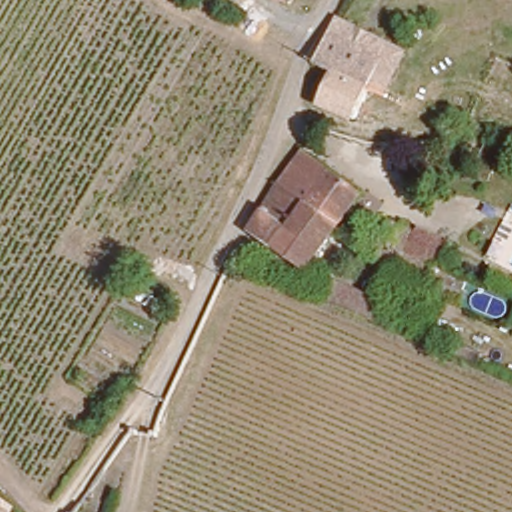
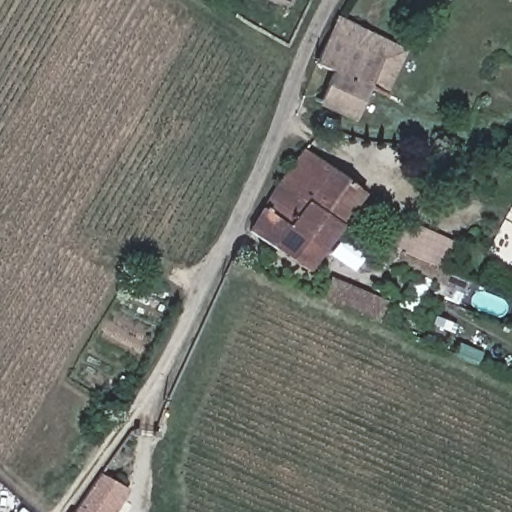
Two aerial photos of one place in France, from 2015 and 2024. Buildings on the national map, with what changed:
unchanged [(275,0),(292,0),(291,3),(290,6),(275,0)]
unchanged [(510,0),(512,0),(512,1),(510,0)]
unchanged [(336,69),(321,61),(333,33),(342,15),(407,48),(399,65),(385,94),(371,86),(336,69)]
unchanged [(362,105),(353,119),(337,111),(319,103),(336,69),(371,86),(362,105)]
unchanged [(278,175),(302,142),(367,183),(342,215),(278,175)]
unchanged [(342,215),(307,263),(247,223),(261,197),(278,175),(342,215)]
unchanged [(452,241),(443,262),(422,254),(397,244),(393,248),(373,237),(384,214),(452,241)]
unchanged [(387,298),(379,316),(327,293),(336,275),(387,298)]
new [(128,489),(114,512),(84,512),(77,508),(100,474),(128,489)]
unchanged [(77,508),(84,512),(75,512),(77,508)]

